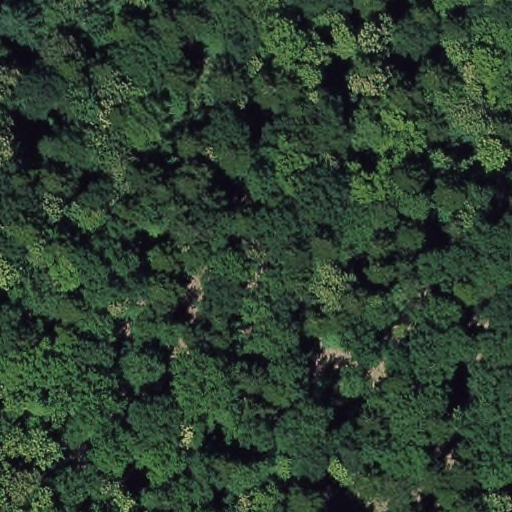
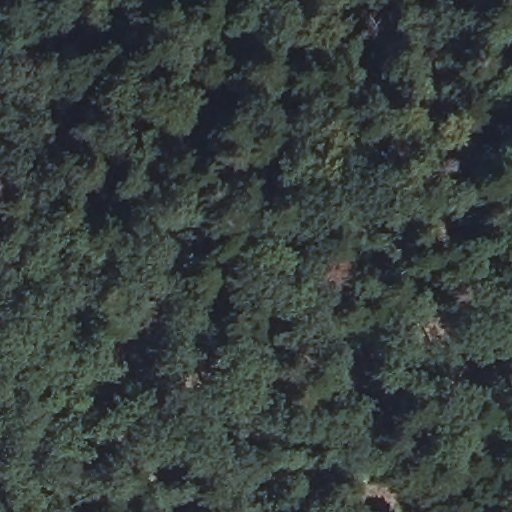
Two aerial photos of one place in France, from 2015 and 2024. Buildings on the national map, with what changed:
[]

